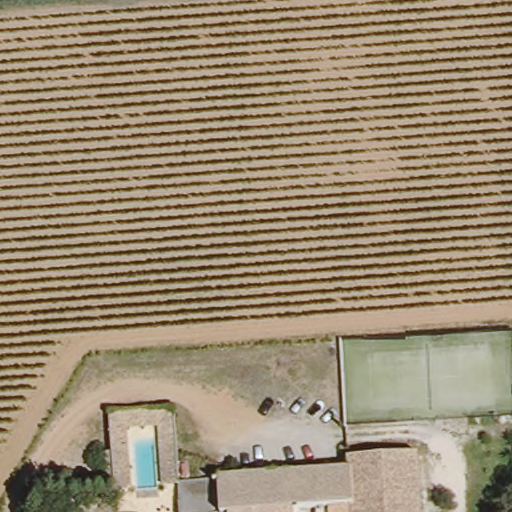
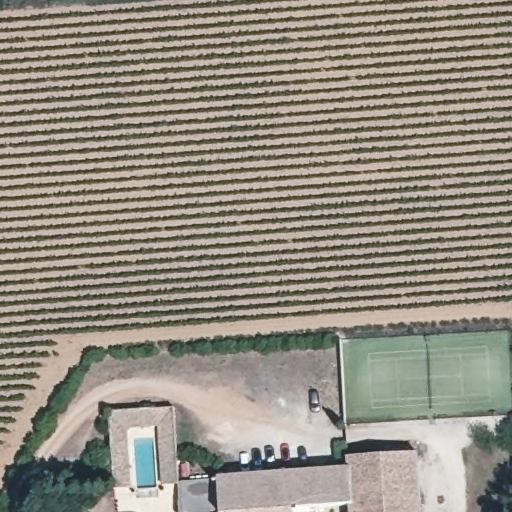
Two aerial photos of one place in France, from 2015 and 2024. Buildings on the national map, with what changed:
unchanged [(185,480),(183,480),(183,482),(167,483),(163,425),(133,427),(137,485),(110,486),(109,474),(107,451),(117,450),(115,409),(179,406),(183,453),(185,480)]
unchanged [(448,495),(449,512),(352,512),(352,503),(359,502),(356,465),(353,466),(352,453),(424,449),(427,496),(448,495)]
unchanged [(183,480),(224,477),(224,476),(353,466),(356,465),(359,502),(352,503),(352,512),(334,512),(334,505),(300,507),(300,512),(185,512),(183,482),(183,480)]

